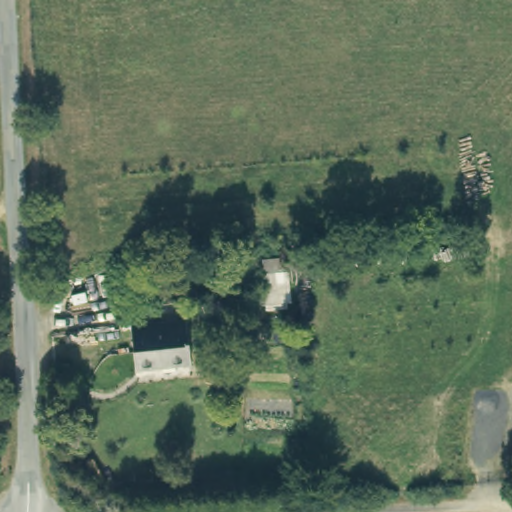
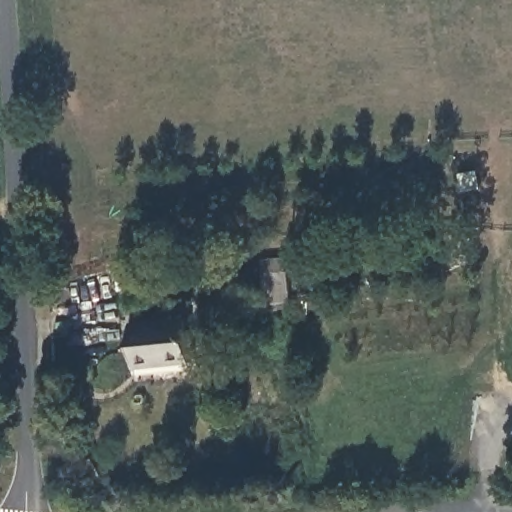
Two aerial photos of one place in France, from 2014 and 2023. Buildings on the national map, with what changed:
unchanged [(288,307),(261,306),(257,256),(287,255),(288,307)]
unchanged [(134,365),(131,322),(186,318),(189,361),(134,365)]

